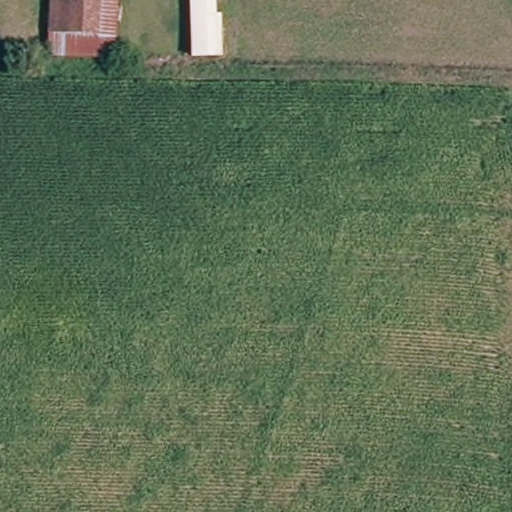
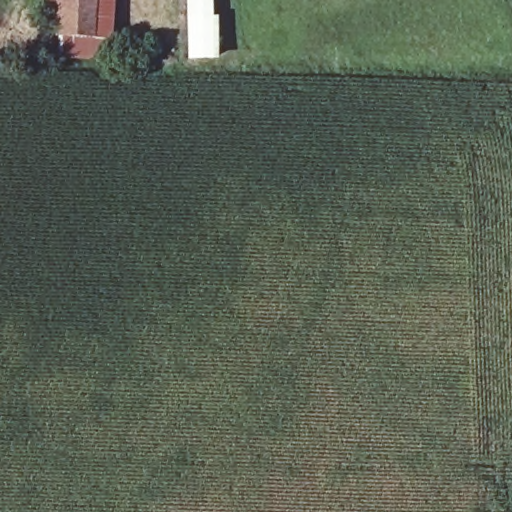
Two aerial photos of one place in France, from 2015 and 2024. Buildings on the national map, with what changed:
unchanged [(46,0),(114,0),(111,37),(111,59),(43,57),(44,32),(46,0)]
unchanged [(213,0),(216,57),(187,60),(186,0),(213,0)]

